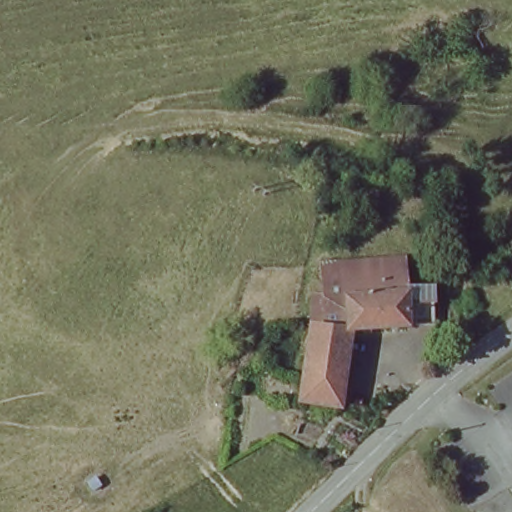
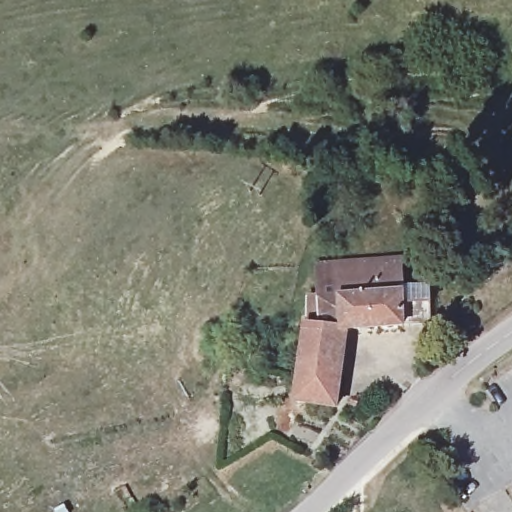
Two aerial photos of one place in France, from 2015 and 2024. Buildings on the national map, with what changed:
unchanged [(430,297),(432,329),(405,332),(342,337),(340,385),(300,383),(306,341),(305,303),(315,303),(315,290),(322,289),(321,267),(362,264),(400,263),(402,284),(403,298),(430,297)]
unchanged [(340,385),(338,415),(297,411),(300,383),(340,385)]

